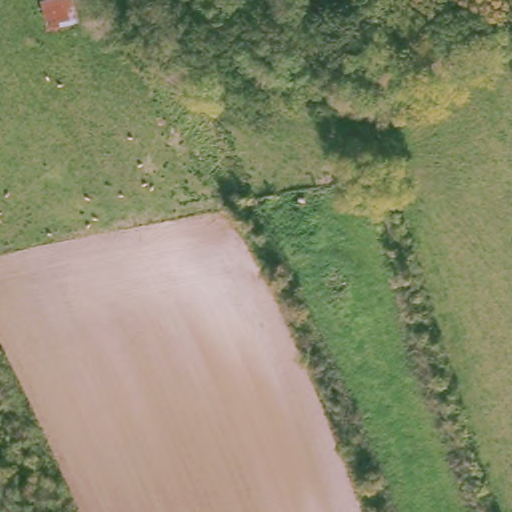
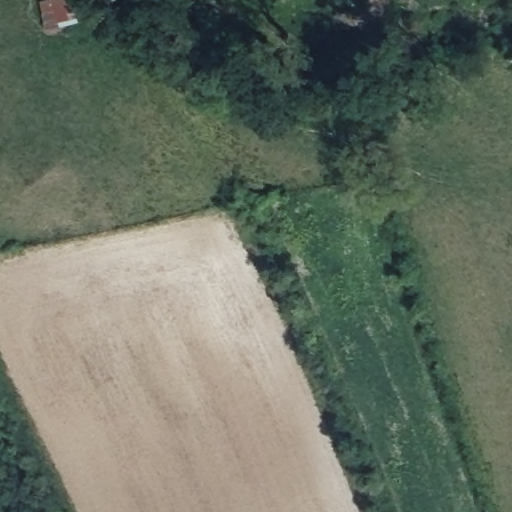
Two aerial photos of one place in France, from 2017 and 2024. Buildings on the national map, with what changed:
unchanged [(77,0),(81,24),(45,28),(41,0),(46,0),(77,0)]

